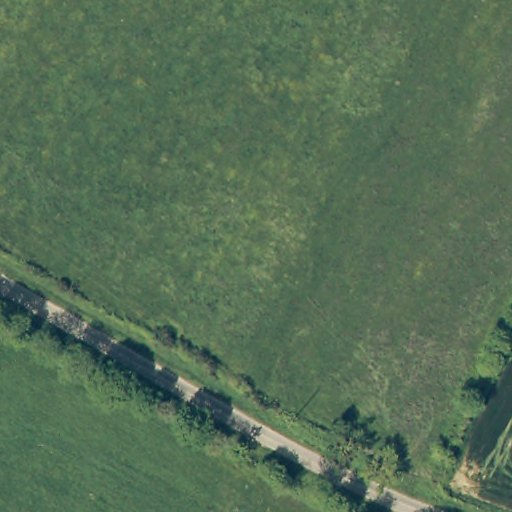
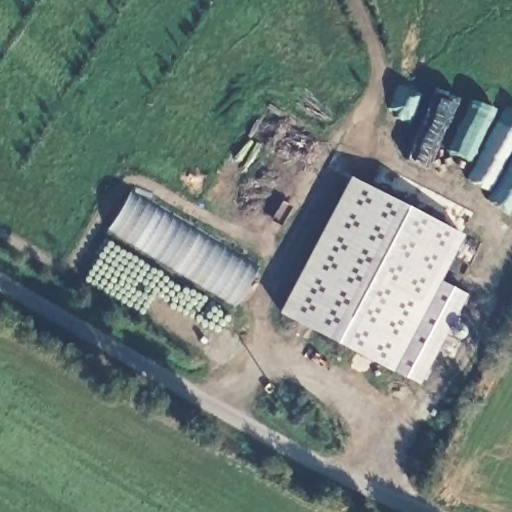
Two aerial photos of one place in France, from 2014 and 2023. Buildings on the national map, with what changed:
new [(347,176),(462,234),(439,280),(467,293),(419,384),(392,369),(391,371),(277,312),(347,176)]
new [(256,266),(233,305),(105,229),(129,189),(256,266)]

